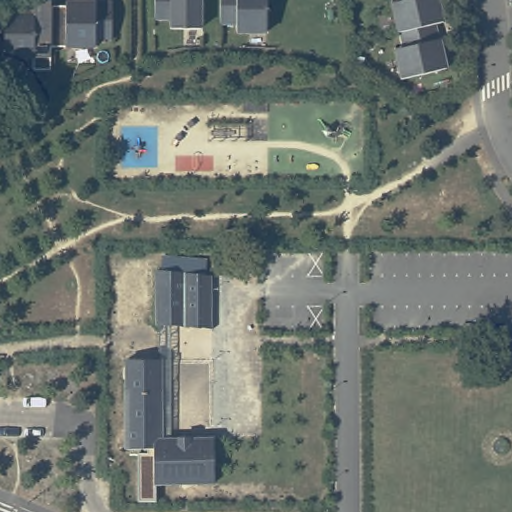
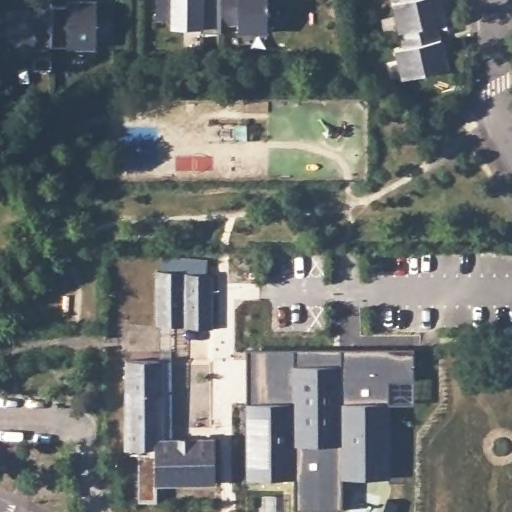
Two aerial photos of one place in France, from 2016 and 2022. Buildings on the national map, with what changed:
unchanged [(108,29),(91,29),(91,37),(47,39),(46,5),(46,4),(46,0),(107,0),(108,29)]
unchanged [(198,21),(168,21),(168,13),(152,13),(152,0),(198,0),(198,21)]
unchanged [(261,26),(232,26),(232,18),(215,18),(215,0),(261,0),(261,26)]
unchanged [(437,10),(435,10),(436,18),(430,20),(395,28),(393,29),(386,0),(435,0),(437,10)]
unchanged [(47,39),(47,62),(29,62),(29,49),(1,50),(0,7),(8,7),(8,4),(29,4),(29,5),(46,5),(47,39)]
unchanged [(434,35),(436,34),(441,56),(439,57),(441,64),(398,74),(390,45),(399,43),(395,28),(430,20),(434,35)]
unchanged [(212,273),(212,329),(156,326),(156,271),(212,273)]
new [(413,348),(414,379),(388,379),(388,479),(341,478),(339,509),(293,510),(294,480),(245,479),(243,403),(245,403),(243,349),(413,348)]
unchanged [(214,446),(214,486),(153,485),(153,461),(147,461),(147,456),(128,456),(128,450),(126,450),(126,435),(125,361),(160,360),(161,440),(214,439),(214,446)]

